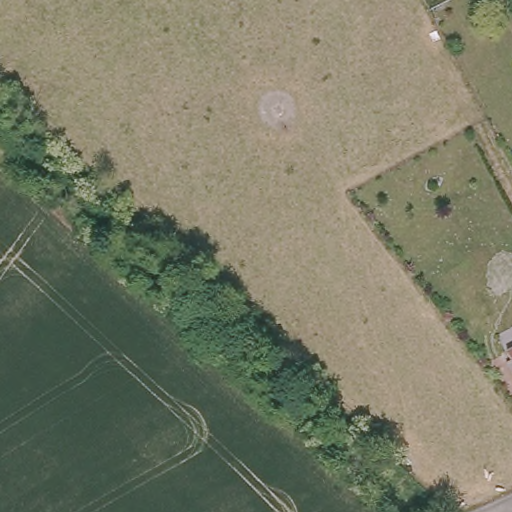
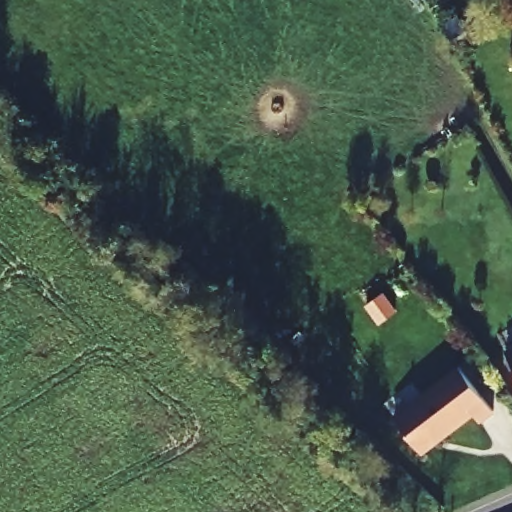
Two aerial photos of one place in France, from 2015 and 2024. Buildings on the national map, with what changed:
unchanged [(512,347),(512,358),(507,349),(512,347)]
new [(422,454),(393,415),(460,367),(492,412),(480,422),(472,416),(422,454)]

